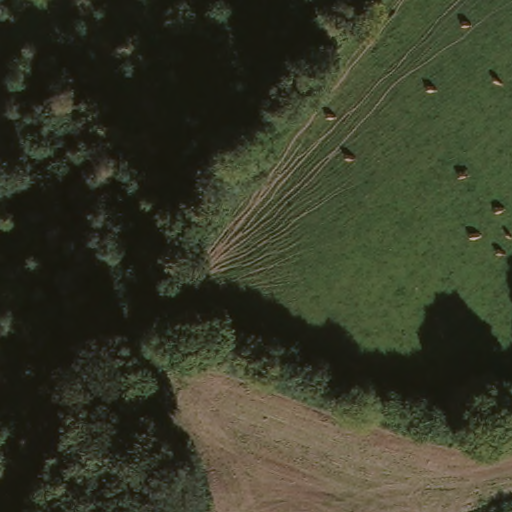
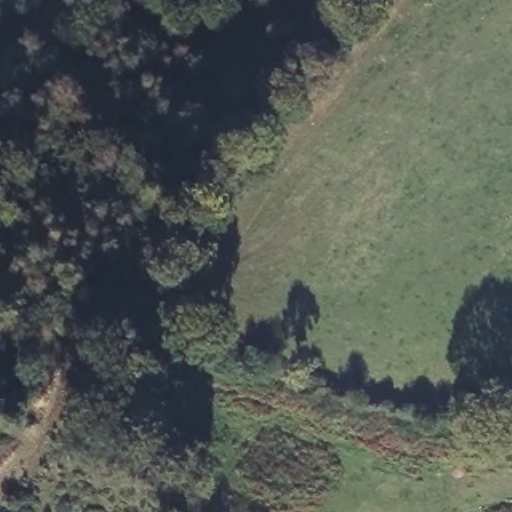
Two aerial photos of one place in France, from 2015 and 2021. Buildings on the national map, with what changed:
[]

